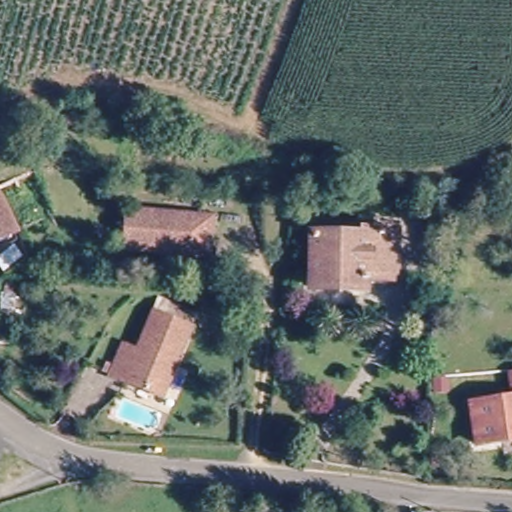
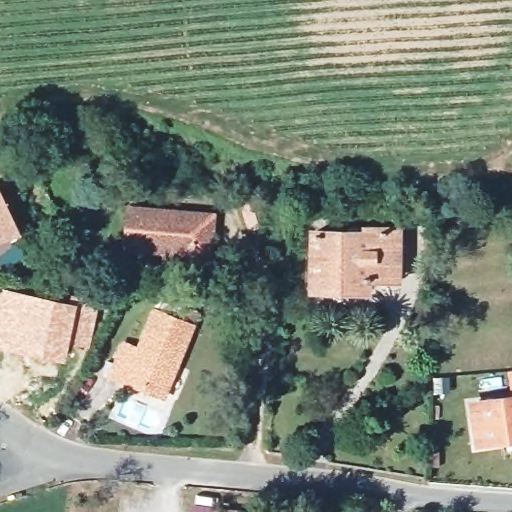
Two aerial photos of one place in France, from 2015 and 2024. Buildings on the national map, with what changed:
unchanged [(14,227),(0,233),(0,188),(14,227)]
unchanged [(171,260),(171,250),(128,247),(130,209),(213,215),(211,254),(189,252),(189,261),(171,260)]
unchanged [(333,294),(313,292),(317,239),(364,242),(364,235),(388,237),(385,287),(363,286),(363,296),(333,294)]
new [(70,300),(72,289),(85,292),(84,296),(100,300),(88,349),(69,345),(65,360),(0,348),(0,287),(70,300)]
unchanged [(125,346),(138,350),(154,308),(195,325),(167,396),(114,377),(125,346)]
unchanged [(469,410),(511,402),(506,377),(506,375),(512,374),(512,441),(476,447),(469,410)]
new [(191,503),(248,510),(248,512),(190,512),(191,503)]

